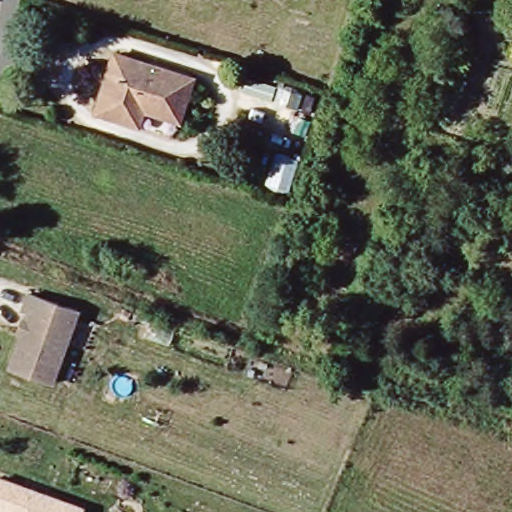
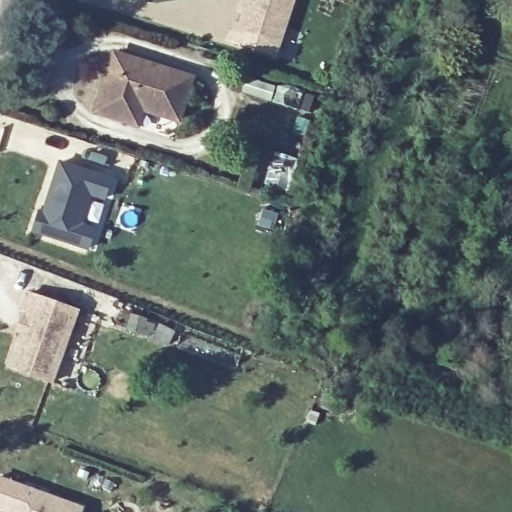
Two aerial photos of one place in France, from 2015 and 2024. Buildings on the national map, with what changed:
new [(240,28),(244,15),(239,12),(242,0),(248,2),(248,3),(249,0),(295,0),(275,59),(228,42),(233,26),(240,28)]
unchanged [(124,122),(100,115),(118,55),(197,80),(184,122),(147,110),(141,128),(124,122)]
unchanged [(270,90),(266,105),(237,95),(241,81),(270,90)]
new [(95,226),(90,246),(35,229),(41,209),(45,210),(62,159),(112,175),(106,195),(92,191),(82,222),(95,226)]
unchanged [(14,361),(24,332),(20,331),(24,318),(29,320),(31,312),(25,310),(31,293),(80,310),(56,376),(55,382),(11,367),(14,361)]
unchanged [(86,507),(85,512),(10,512),(0,509),(0,481),(1,478),(86,507)]

